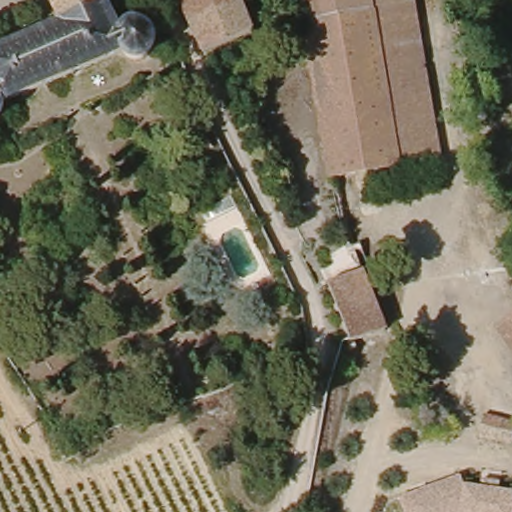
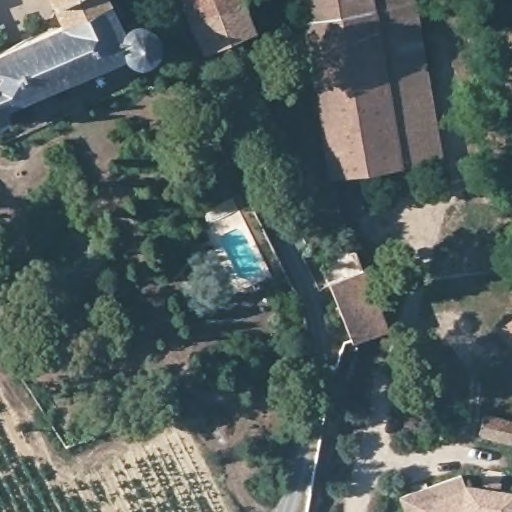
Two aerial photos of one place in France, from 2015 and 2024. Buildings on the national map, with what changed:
unchanged [(0,120),(0,34),(62,4),(59,0),(112,0),(117,10),(131,8),(143,10),(153,22),(154,37),(145,52),(132,55),(121,51),(112,45),(6,96),(6,109),(1,120),(0,120)]
unchanged [(202,54),(184,7),(181,0),(245,0),(256,25),(202,54)]
unchanged [(327,162),(300,0),(371,0),(398,153),(339,161),(327,162)]
unchanged [(398,153),(371,0),(407,0),(435,147),(398,153)]
unchanged [(348,338),(346,315),(335,278),(365,266),(384,321),(348,338)]
unchanged [(512,318),(512,360),(491,335),(512,318)]
unchanged [(418,381),(417,363),(433,363),(435,382),(418,381)]
unchanged [(482,430),(489,407),(512,414),(512,437),(482,430)]
unchanged [(398,498),(459,475),(463,485),(512,492),(512,512),(404,512),(398,498)]

